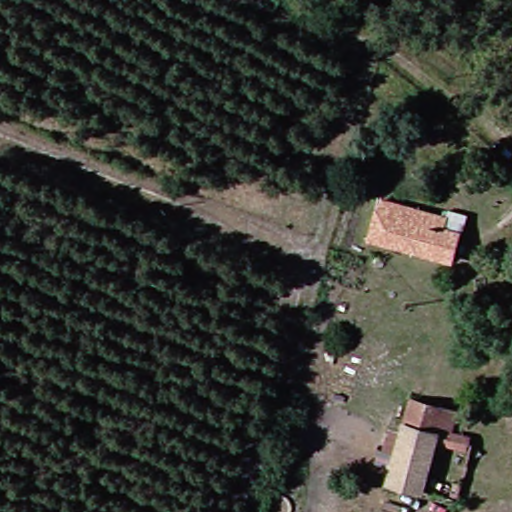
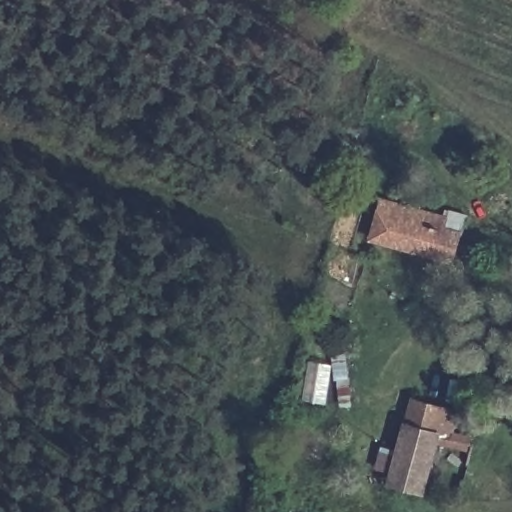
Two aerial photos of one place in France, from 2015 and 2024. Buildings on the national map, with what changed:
unchanged [(457,254),(435,249),(384,236),(392,205),(442,222),(465,228),(457,254)]
unchanged [(400,480),(420,394),(455,402),(440,488),(400,480)]

